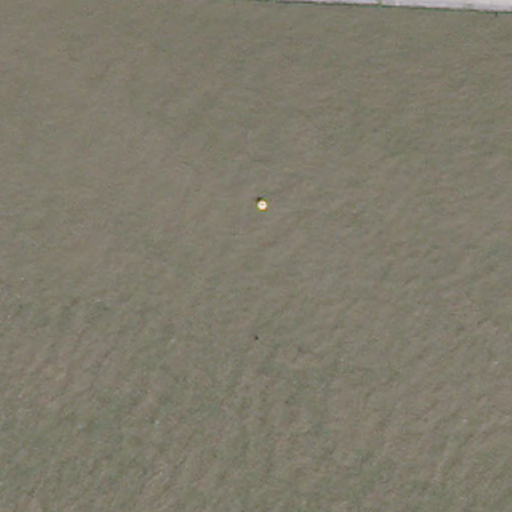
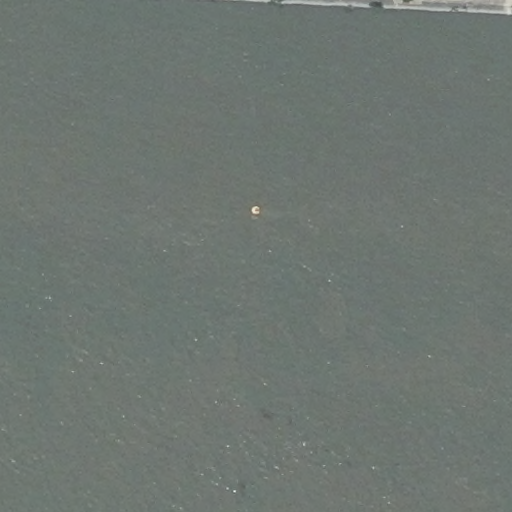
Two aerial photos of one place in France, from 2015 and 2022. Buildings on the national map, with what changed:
[]

